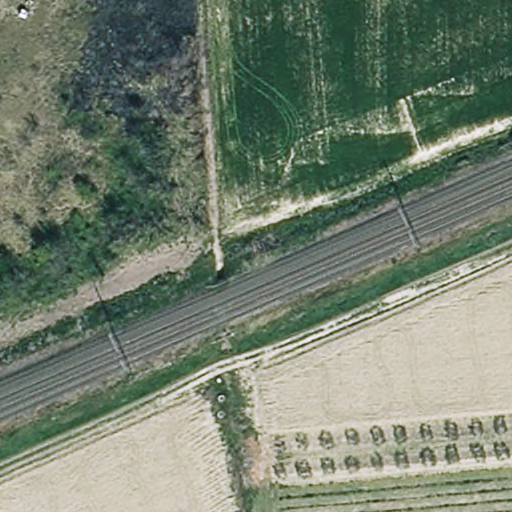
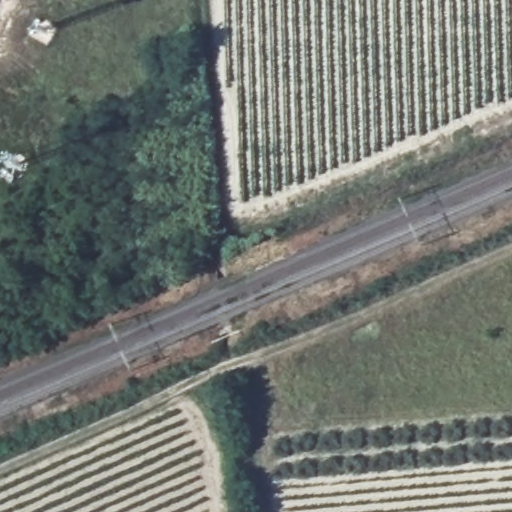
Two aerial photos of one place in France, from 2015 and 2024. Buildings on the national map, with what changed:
unchanged [(293,330),(286,316),(298,311),(304,324),(293,330)]

